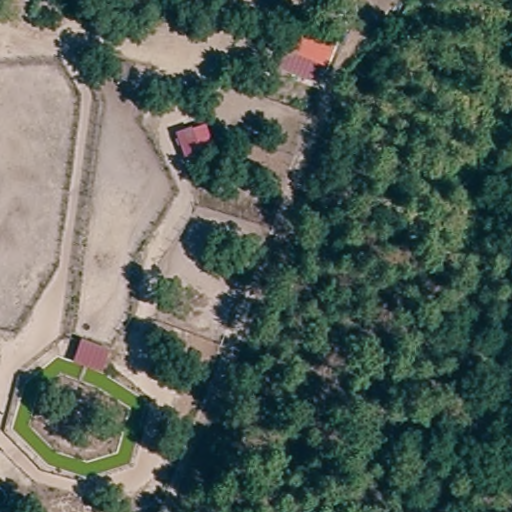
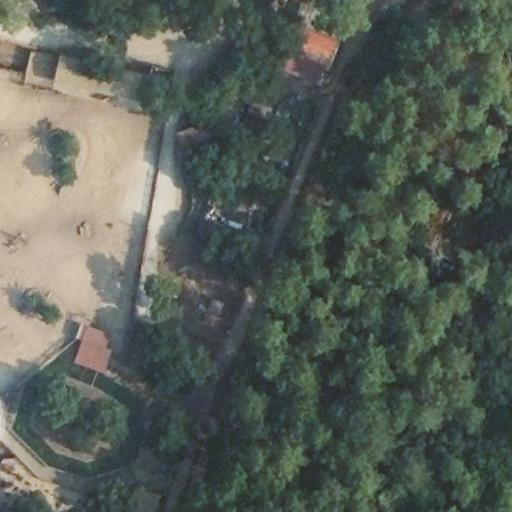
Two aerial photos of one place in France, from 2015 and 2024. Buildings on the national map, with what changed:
unchanged [(316,70),(273,45),(283,25),(325,45),(316,70)]

